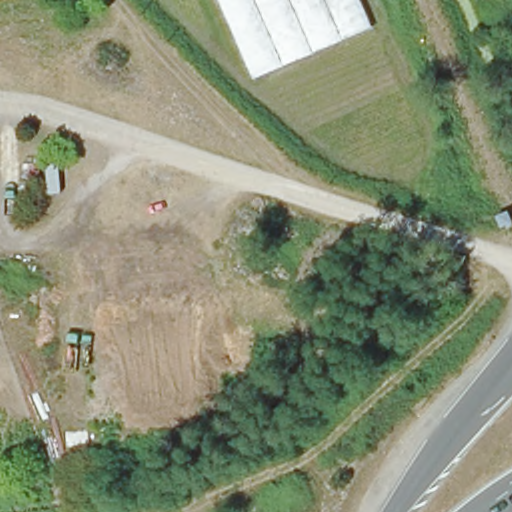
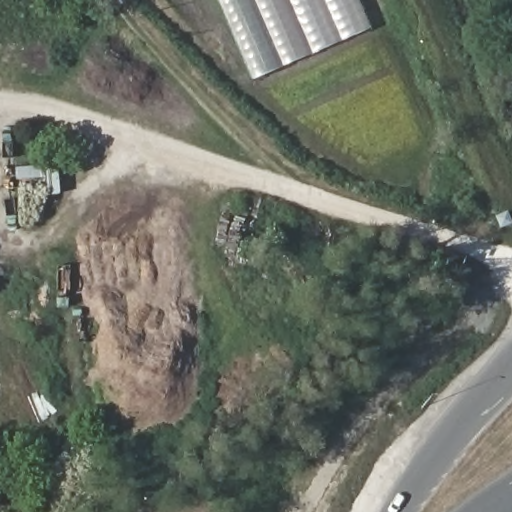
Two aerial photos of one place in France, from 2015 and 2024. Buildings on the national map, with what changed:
unchanged [(251,76),(217,0),(360,0),(372,27),(251,76)]
unchanged [(512,222),(502,227),(496,214),(508,209),(512,219),(512,222)]

